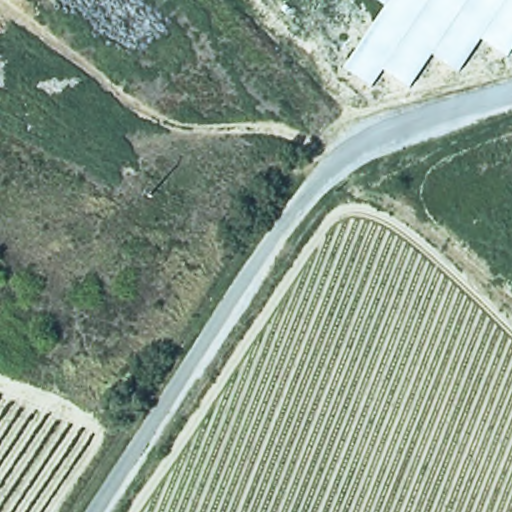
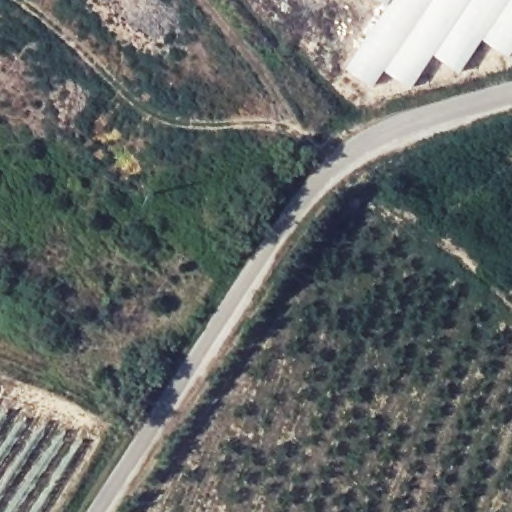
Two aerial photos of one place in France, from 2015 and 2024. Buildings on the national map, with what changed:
unchanged [(482,46),(458,75),(433,61),(409,90),(383,75),(373,93),(340,70),(383,7),(373,0),(512,0),(512,54),(506,62),(482,46)]

